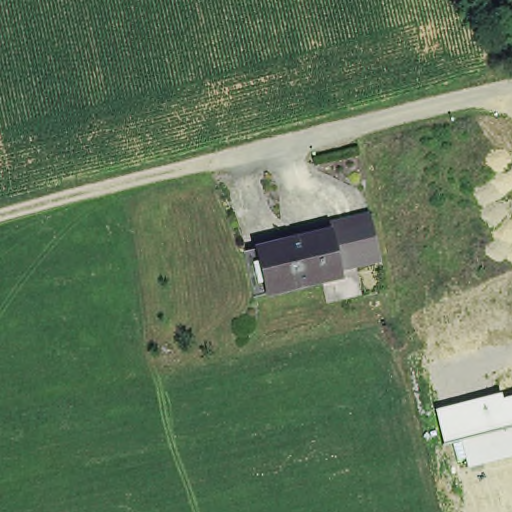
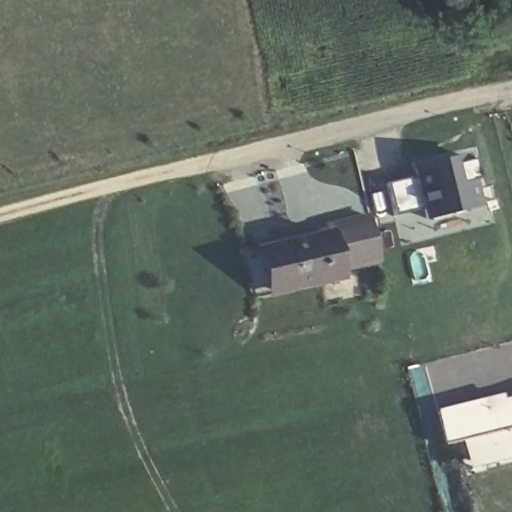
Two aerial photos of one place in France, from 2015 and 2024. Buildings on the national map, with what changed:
new [(426,221),(421,206),(396,212),(389,184),(414,178),(411,167),(471,151),(473,160),(478,180),(473,181),(479,208),(426,221)]
unchanged [(376,221),(385,254),(341,265),(333,232),(376,221)]
unchanged [(253,252),(271,247),(333,231),(333,232),(341,265),(343,272),(281,288),(263,293),(253,252)]
unchanged [(500,394),(502,400),(512,397),(512,457),(466,468),(459,441),(442,446),(434,410),(500,394)]

